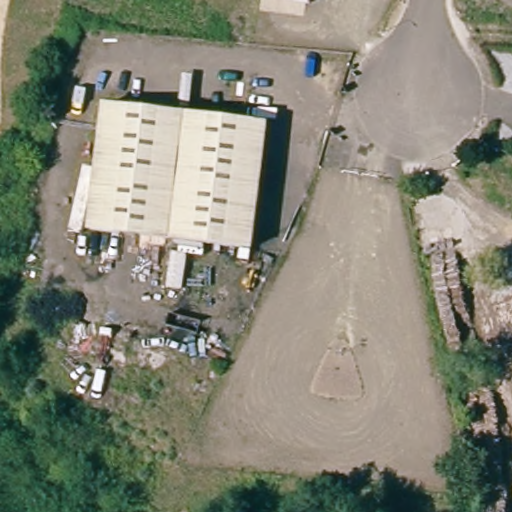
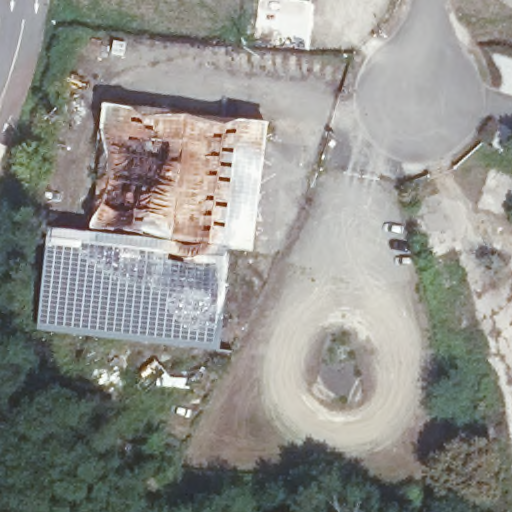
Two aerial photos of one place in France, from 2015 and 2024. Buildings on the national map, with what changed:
unchanged [(317,4),(285,0),(317,0),(317,4)]
unchanged [(94,233),(107,108),(266,127),(252,252),(94,233)]
new [(219,349),(39,331),(53,228),(94,233),(231,250),(230,260),(219,349)]

